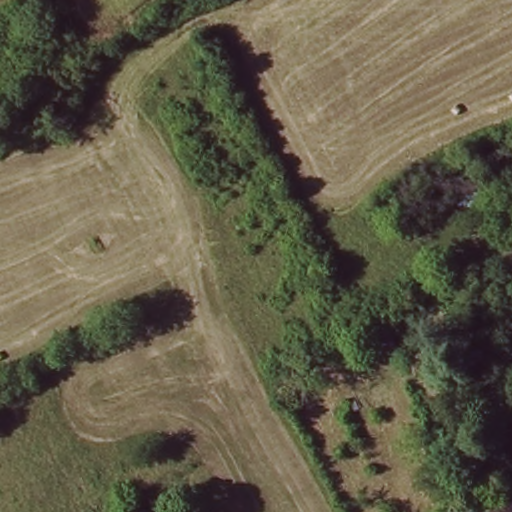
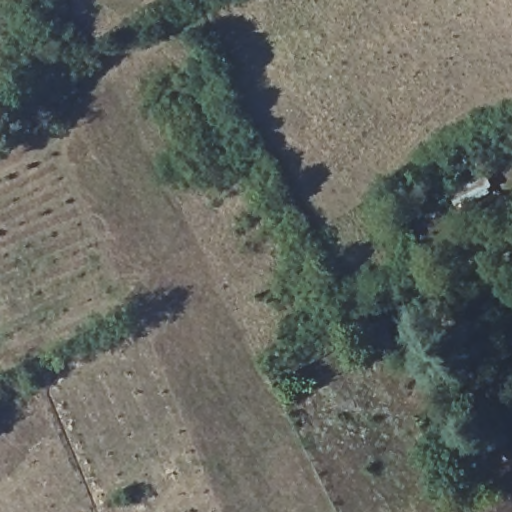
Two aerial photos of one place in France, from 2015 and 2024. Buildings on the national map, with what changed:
unchanged [(391,320),(400,344),(397,345),(385,350),(381,342),(368,347),(362,329),(388,321),(391,320)]

